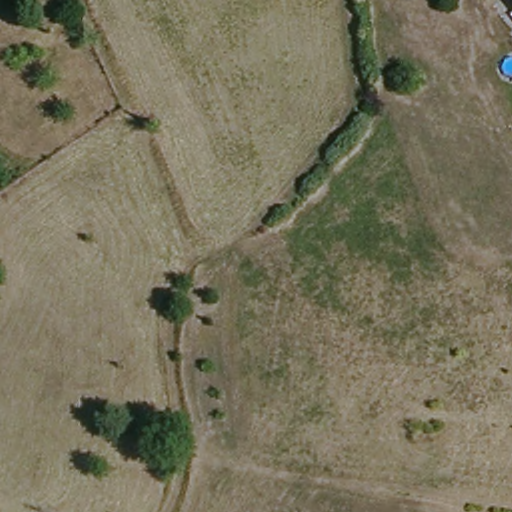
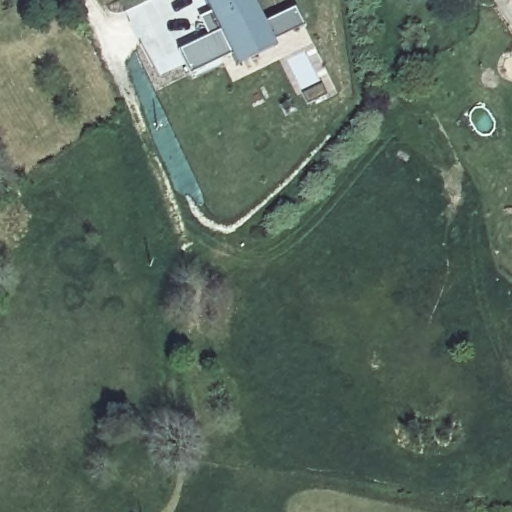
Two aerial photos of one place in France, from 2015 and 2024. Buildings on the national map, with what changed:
new [(234,60),(190,77),(180,52),(213,39),(205,19),(214,15),(208,0),(255,0),(265,25),(297,11),(305,30),(273,44),(276,50),(236,66),(234,60)]

